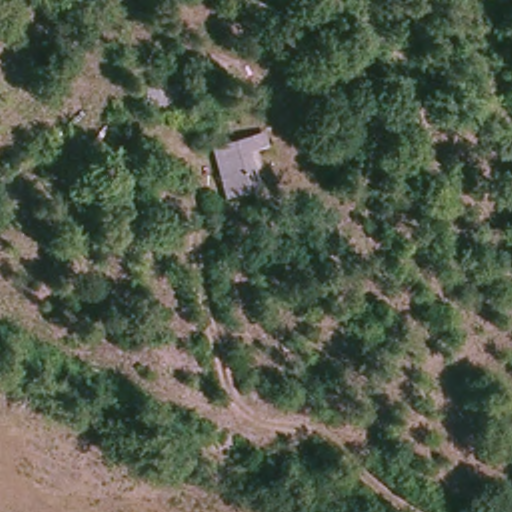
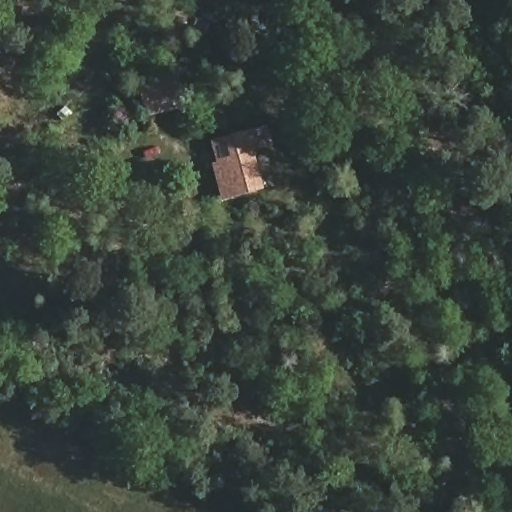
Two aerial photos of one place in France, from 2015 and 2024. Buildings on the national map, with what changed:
unchanged [(154,114),(148,93),(178,84),(184,105),(154,114)]
unchanged [(213,150),(266,133),(270,147),(252,152),(261,190),(228,198),(213,150)]

